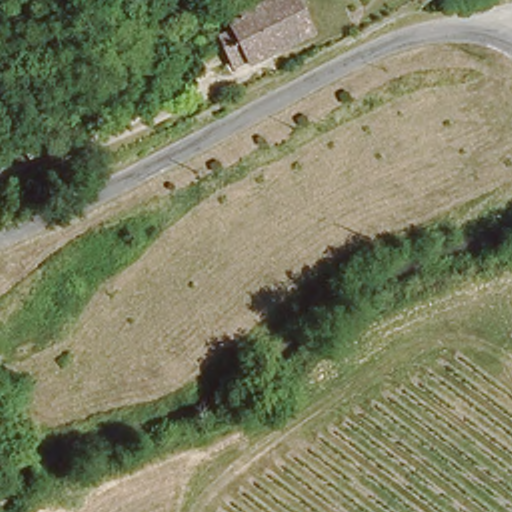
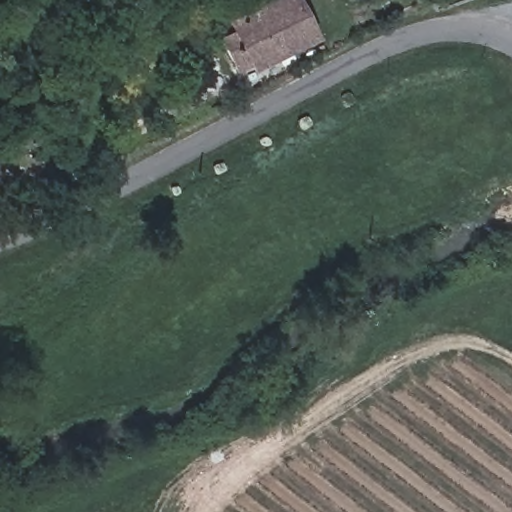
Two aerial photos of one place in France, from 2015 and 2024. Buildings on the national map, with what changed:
unchanged [(231,19),(265,0),(300,0),(315,31),(252,63),(249,56),(228,66),(212,30),(231,19)]

